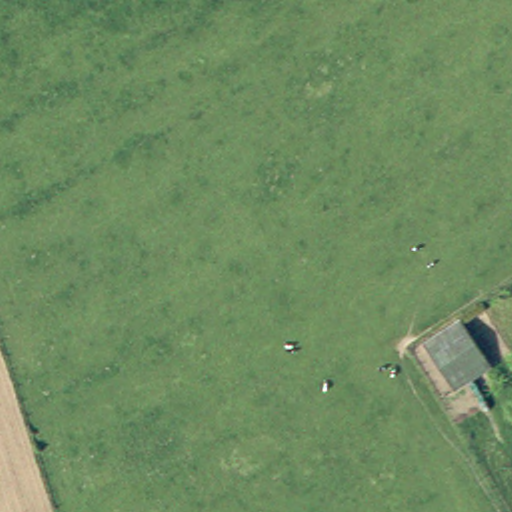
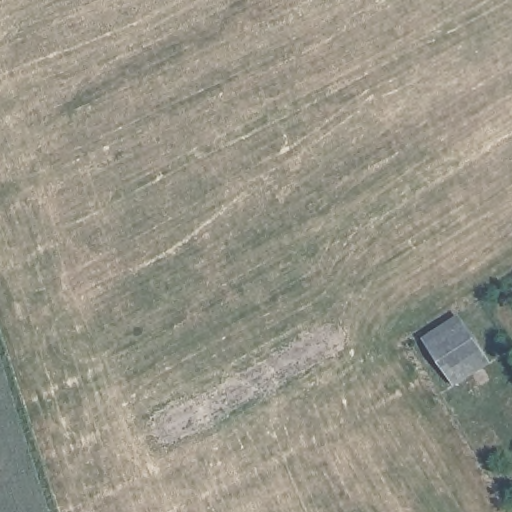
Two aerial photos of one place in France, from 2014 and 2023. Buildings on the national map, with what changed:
unchanged [(461,317),(491,364),(453,386),(427,337),(461,317)]

